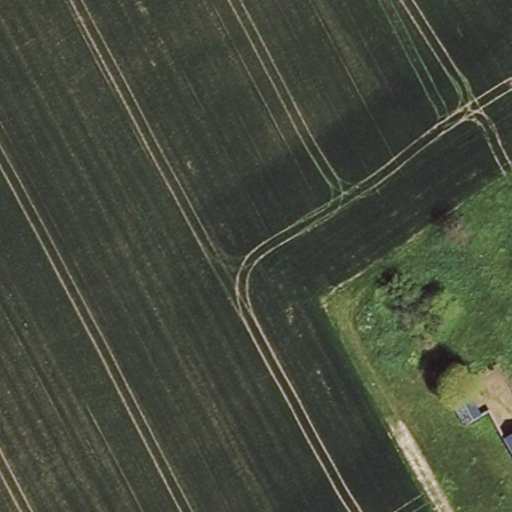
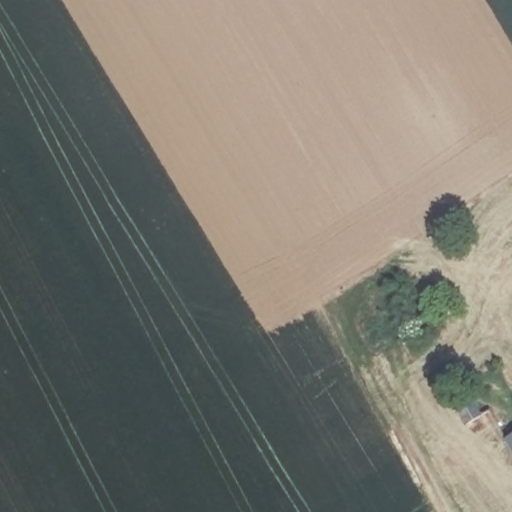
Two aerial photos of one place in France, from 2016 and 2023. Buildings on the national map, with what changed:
unchanged [(471,424),(457,403),(472,393),(486,414),(471,424)]
unchanged [(512,437),(512,452),(505,442),(512,437)]

